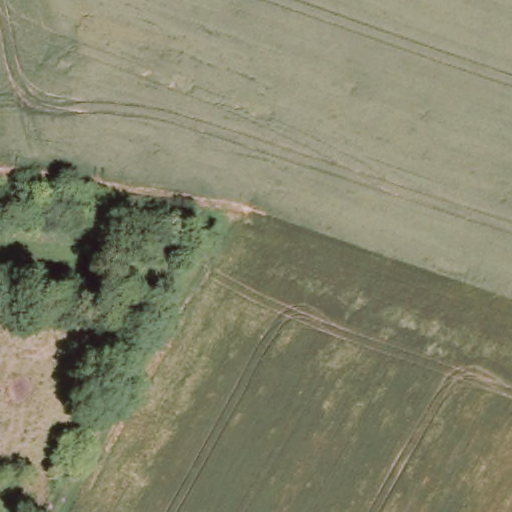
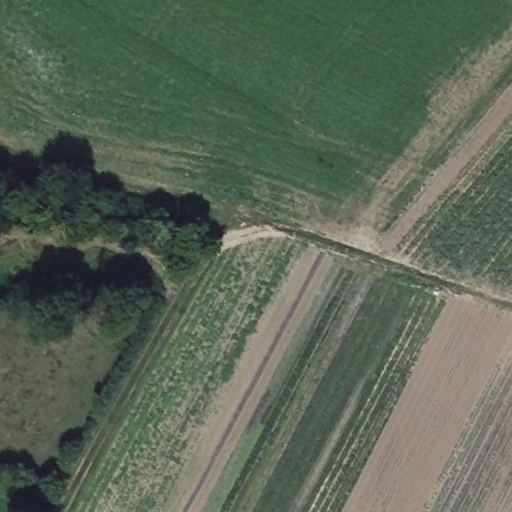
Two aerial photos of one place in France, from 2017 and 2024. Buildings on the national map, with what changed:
unchanged [(120,202),(119,220),(81,216),(84,198),(120,202)]

